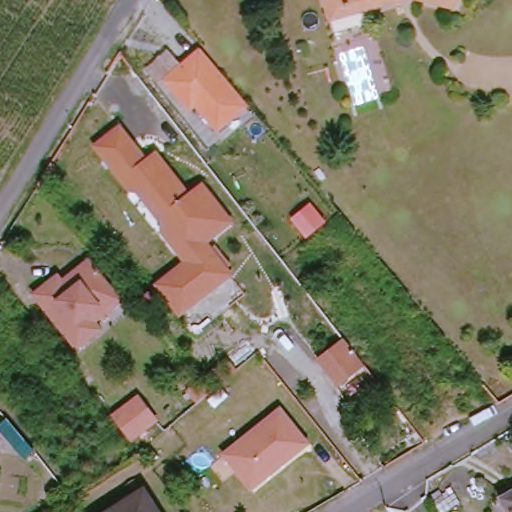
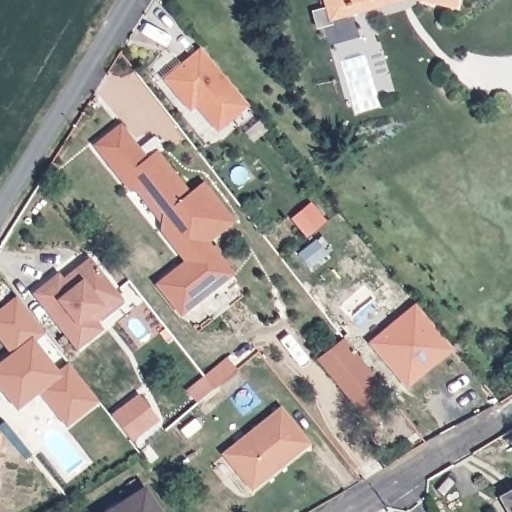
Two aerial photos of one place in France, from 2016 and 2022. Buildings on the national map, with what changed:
unchanged [(332,9),(329,0),(401,0),(378,6),(353,14),(335,19),(332,9)]
unchanged [(460,5),(460,7),(432,0),(461,0),(460,5)]
unchanged [(180,64),(199,47),(247,105),(216,130),(194,105),(187,110),(160,80),(156,83),(143,69),(167,49),(180,64)]
unchanged [(117,127),(144,160),(154,151),(156,155),(188,192),(201,181),(233,219),(208,240),(235,271),(212,290),(185,313),(160,284),(189,260),(185,256),(163,230),(163,229),(164,214),(147,192),(133,191),(130,191),(93,148),(95,145),(117,127)]
unchanged [(325,224),(305,239),(288,220),(309,204),(325,224)]
unchanged [(127,305),(99,327),(105,335),(82,355),(38,300),(62,281),(67,286),(76,279),(94,265),(120,297),(121,298),(127,305)]
new [(65,425),(38,390),(15,408),(0,388),(0,364),(12,353),(0,337),(0,311),(16,298),(97,399),(65,425)]
new [(453,350),(407,388),(367,345),(415,304),(453,350)]
new [(382,386),(354,407),(317,358),(344,338),(382,386)]
demolished [(347,341),(355,352),(368,368),(342,389),(320,361),(347,341)]
unchanged [(137,398),(155,421),(130,441),(123,432),(112,418),(137,398)]
unchanged [(235,442),(277,406),(306,440),(262,476),(250,487),(222,453),(235,442)]
unchanged [(0,437),(0,425),(2,425),(0,437)]
unchanged [(512,492),(512,512),(508,512),(500,498),(512,492)]
unchanged [(121,512),(147,495),(158,512),(121,512)]

